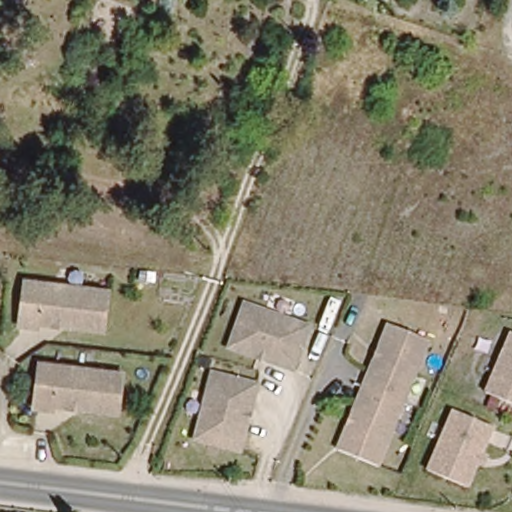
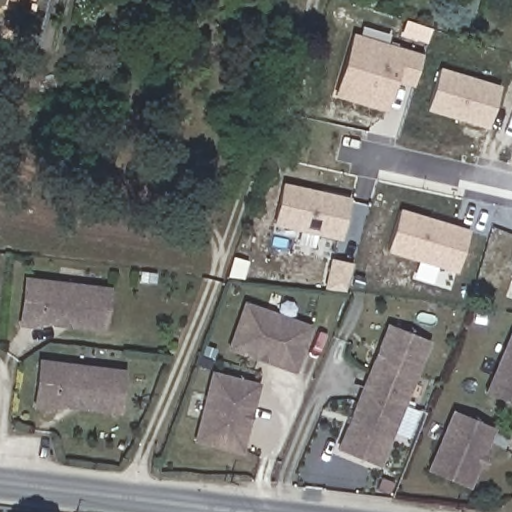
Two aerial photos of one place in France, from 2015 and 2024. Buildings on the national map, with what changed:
new [(411,87),(395,81),(384,111),(332,95),(351,33),(421,54),(411,87)]
new [(502,89),(491,126),(433,109),(444,71),(502,89)]
new [(348,198),(339,240),(271,225),(280,182),(348,198)]
new [(466,224),(454,264),(386,243),(398,204),(466,224)]
unchanged [(38,322),(37,327),(20,324),(26,279),(108,289),(102,329),(69,325),(52,323),(38,322)]
unchanged [(310,327),(295,370),(232,347),(248,304),(310,327)]
unchanged [(430,340),(377,467),(338,451),(391,324),(430,340)]
unchanged [(512,340),(512,403),(488,393),(512,340)]
unchanged [(52,404),(52,409),(34,408),(40,363),(122,371),(117,411),(84,408),(66,406),(52,404)]
unchanged [(259,391),(235,456),(189,437),(217,373),(259,391)]
unchanged [(494,429),(468,488),(429,471),(455,412),(494,429)]

